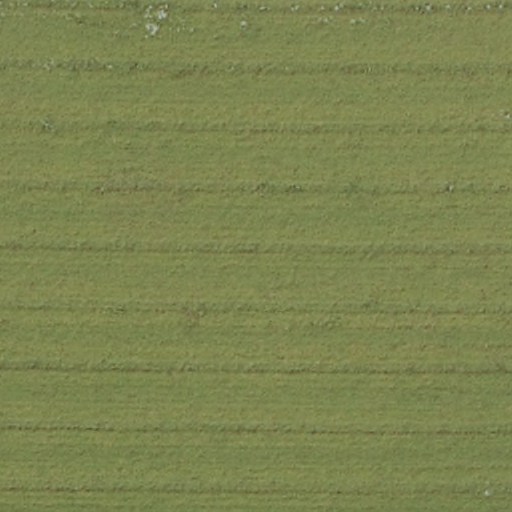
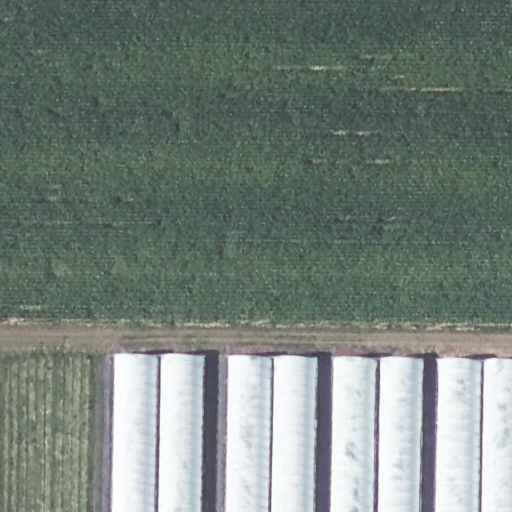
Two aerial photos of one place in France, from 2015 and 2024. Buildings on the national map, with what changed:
new [(512,357),(512,512),(114,512),(116,350),(512,357)]

